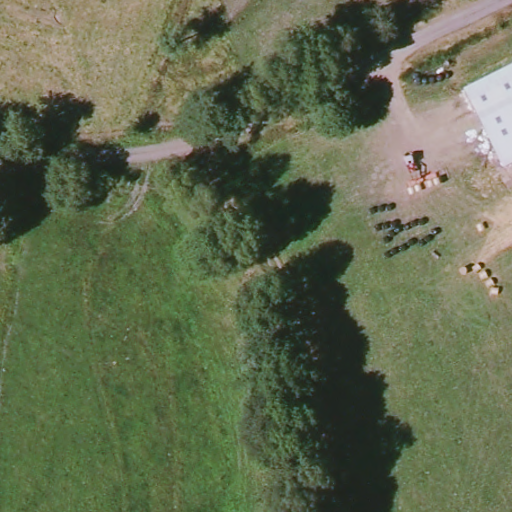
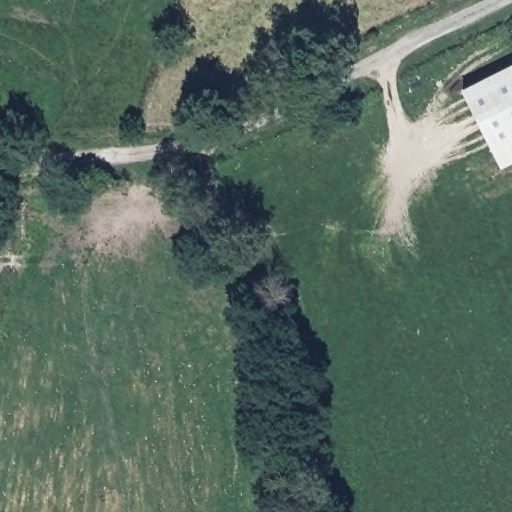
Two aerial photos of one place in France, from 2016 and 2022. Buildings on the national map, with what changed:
unchanged [(463,92),(512,66),(512,165),(502,170),(463,92)]

